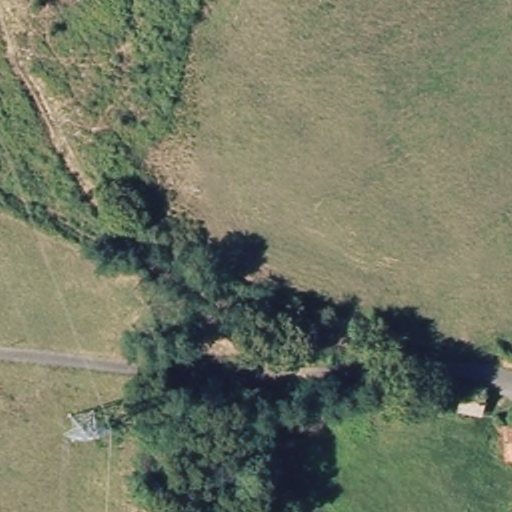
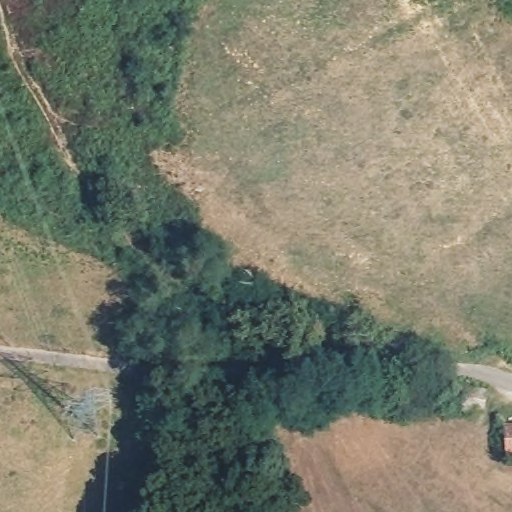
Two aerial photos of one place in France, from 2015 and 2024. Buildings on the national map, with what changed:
unchanged [(438,415),(439,389),(486,393),(485,419),(438,415)]
unchanged [(504,461),(505,431),(512,431),(512,461),(504,461)]

